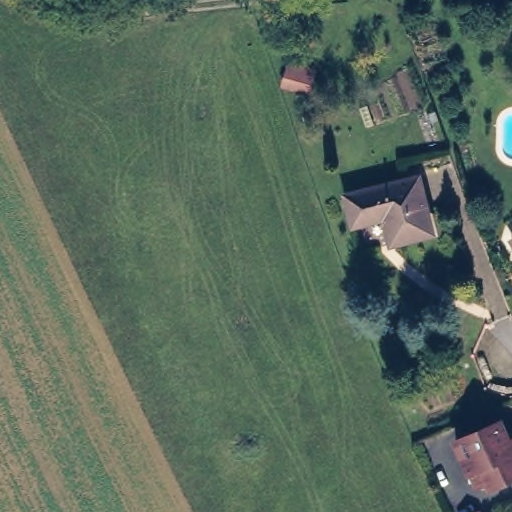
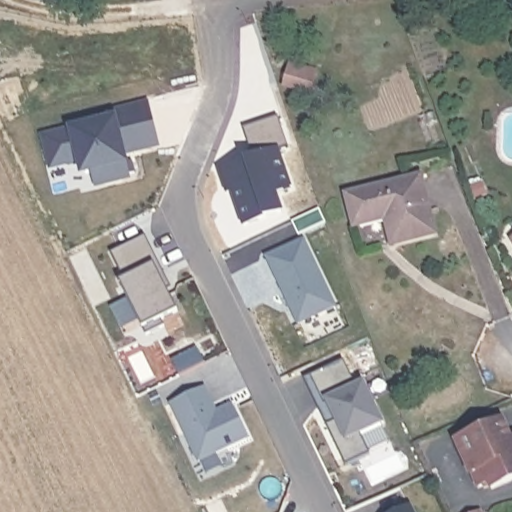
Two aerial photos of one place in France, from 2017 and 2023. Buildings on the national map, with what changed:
unchanged [(292,67),(312,73),(310,77),(307,93),(287,88),(292,72),(292,67)]
new [(117,122),(115,114),(150,106),(160,148),(126,155),(132,179),(99,187),(92,159),(55,168),(47,139),(117,122)]
new [(255,161),(246,131),(283,119),(292,150),(282,154),(294,190),(278,195),(285,215),(247,228),(235,193),(230,194),(225,178),(222,172),(230,170),(255,161)]
unchanged [(350,224),(343,194),(414,179),(427,233),(389,243),(384,223),(382,216),(350,224)]
new [(149,238),(171,283),(167,285),(180,314),(165,322),(168,329),(149,338),(122,284),(127,282),(114,255),(149,238)]
new [(306,243),(337,309),(301,327),(270,260),(306,243)]
new [(359,389),(365,387),(384,425),(362,435),(372,457),(347,468),(328,427),(306,381),(312,378),(345,361),(359,389)]
new [(208,389),(215,405),(212,406),(217,415),(235,407),(250,441),(201,464),(174,405),(208,389)]
unchanged [(475,486),(464,468),(452,442),(458,439),(497,422),(505,441),(512,437),(512,477),(487,489),(483,483),(477,486),(475,486)]
new [(410,508),(412,512),(401,512),(410,508)]

